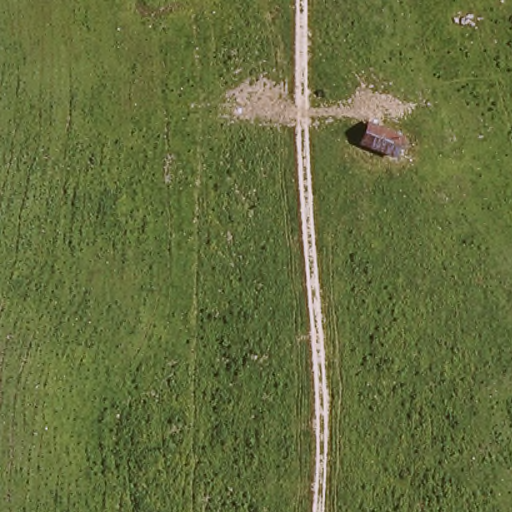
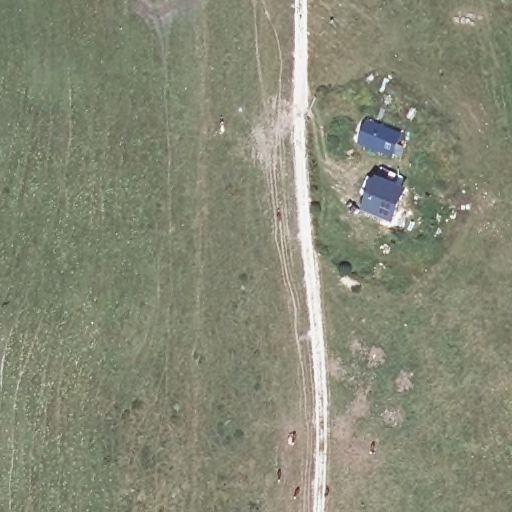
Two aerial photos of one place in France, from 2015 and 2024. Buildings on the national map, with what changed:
unchanged [(365,140),(375,118),(412,133),(399,151),(365,140)]
new [(365,211),(379,176),(410,188),(396,223),(365,211)]

